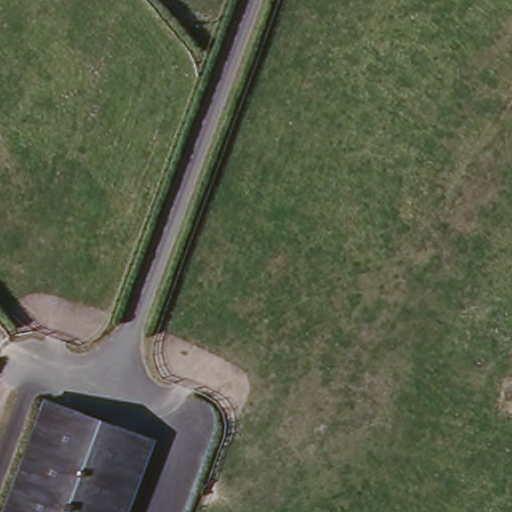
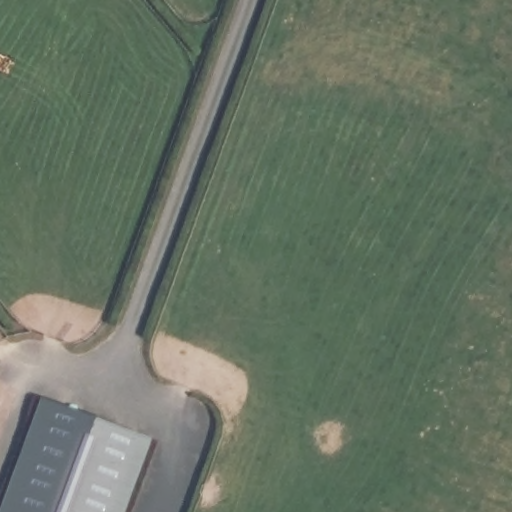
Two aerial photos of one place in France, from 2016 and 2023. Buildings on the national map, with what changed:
unchanged [(147,437),(124,512),(1,512),(36,399),(147,437)]

